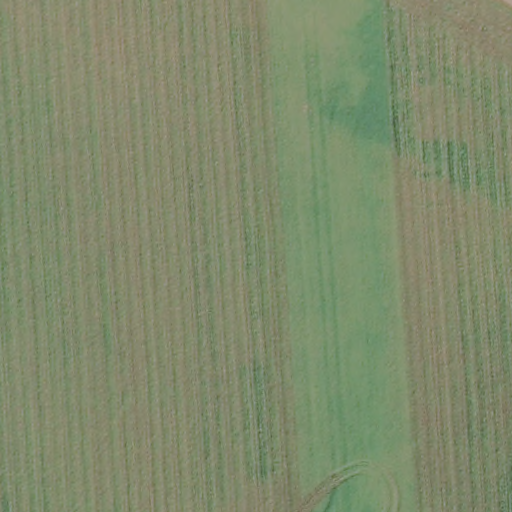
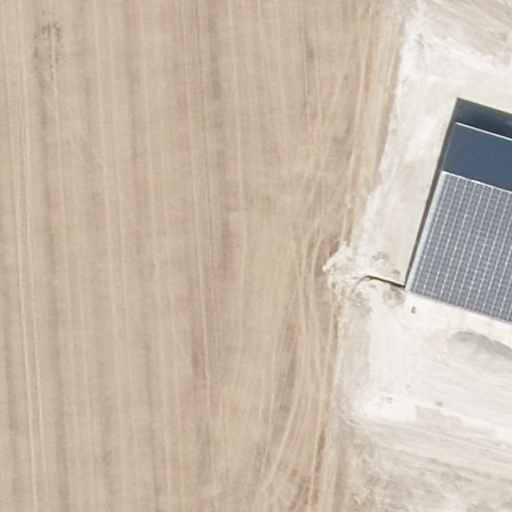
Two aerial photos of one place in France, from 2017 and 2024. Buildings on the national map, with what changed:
new [(403,291),(453,122),(512,140),(512,324),(403,291)]

